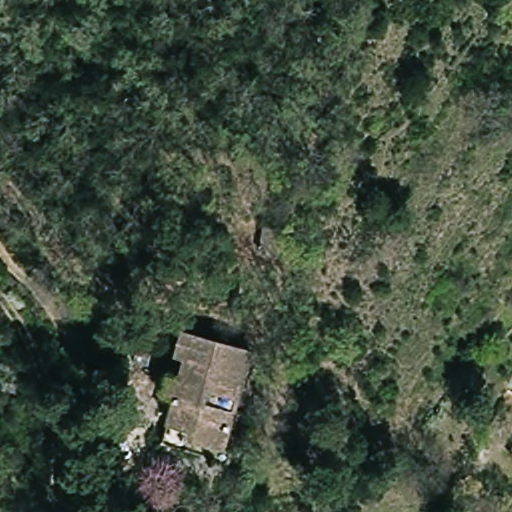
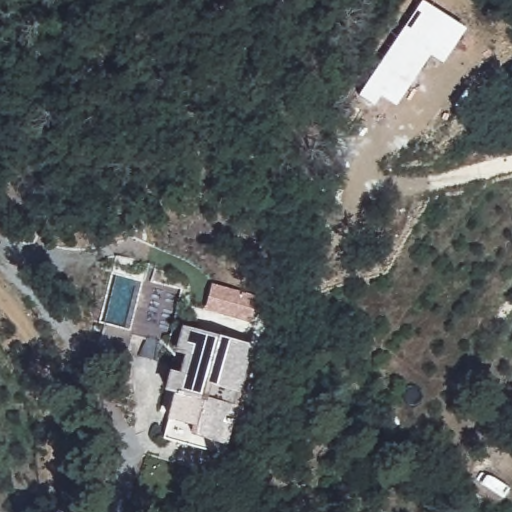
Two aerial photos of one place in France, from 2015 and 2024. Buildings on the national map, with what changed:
new [(466,27),(443,62),(431,55),(397,107),(381,96),(375,105),(360,95),(423,0),(466,27)]
new [(204,310),(212,283),(258,295),(251,323),(204,310)]
unchanged [(227,442),(228,447),(227,451),(224,453),(218,453),(215,449),(215,440),(169,423),(178,398),(169,395),(181,361),(188,363),(196,342),(189,340),(196,320),(262,343),(228,438),(227,442)]

